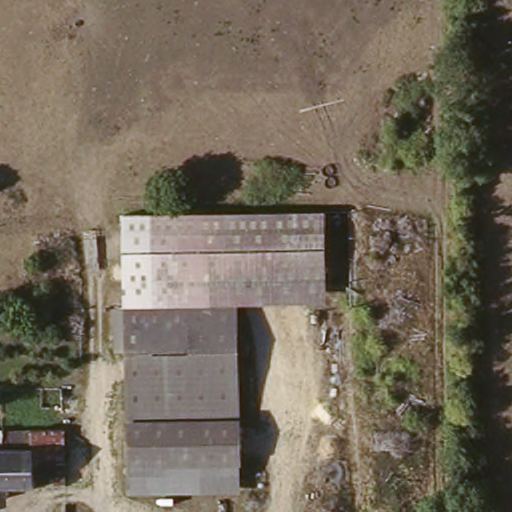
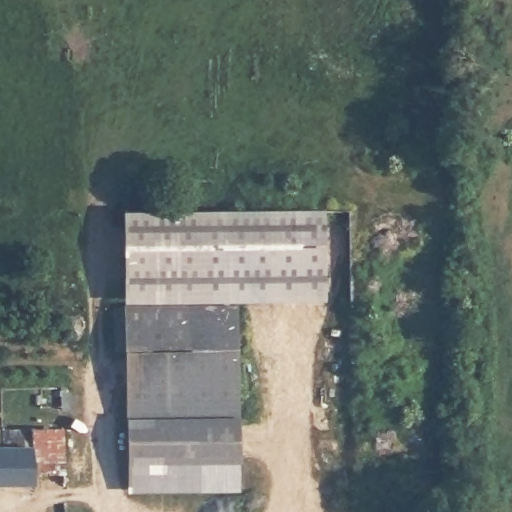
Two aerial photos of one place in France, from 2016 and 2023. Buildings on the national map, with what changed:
unchanged [(226,211),(327,210),(328,252),(227,253),(226,211)]
unchanged [(227,253),(209,253),(211,308),(125,311),(122,212),(226,211),(227,253)]
unchanged [(209,253),(328,252),(330,307),(240,307),(211,308),(209,253)]
unchanged [(240,307),(247,462),(136,467),(133,353),(120,353),(118,311),(240,307)]
unchanged [(36,487),(34,430),(64,429),(67,485),(36,487)]
unchanged [(34,430),(36,487),(0,487),(0,431),(34,430)]
unchanged [(242,494),(135,495),(136,467),(240,462),(242,494)]

